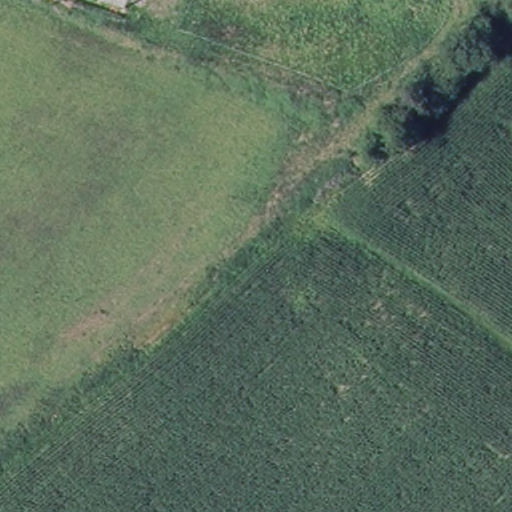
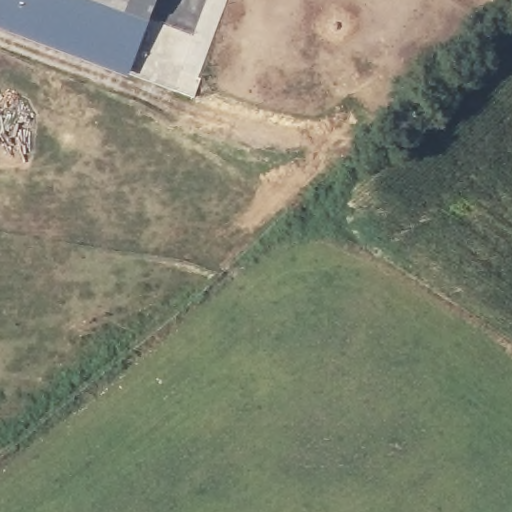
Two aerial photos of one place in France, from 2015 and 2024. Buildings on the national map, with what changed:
new [(125,78),(0,30),(0,0),(89,0),(145,21),(125,78)]
new [(90,0),(154,0),(145,21),(90,0)]
demolished [(99,0),(129,0),(125,11),(99,0)]

